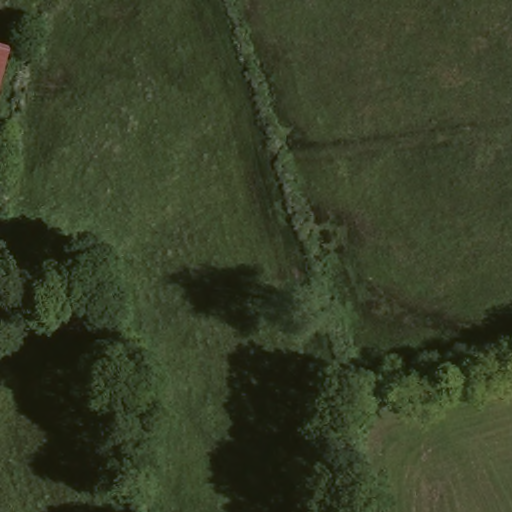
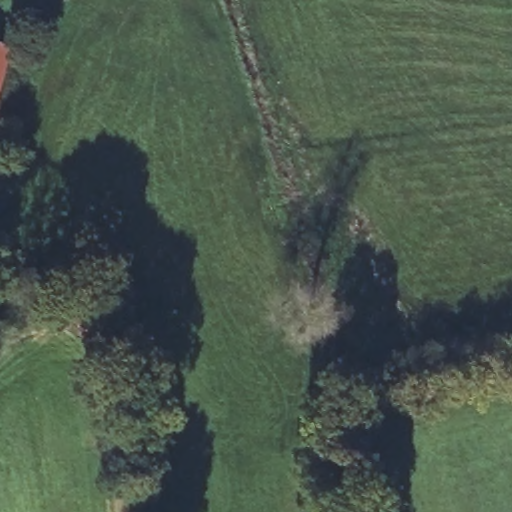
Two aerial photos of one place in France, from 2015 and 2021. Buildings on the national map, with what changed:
unchanged [(0,71),(0,43),(7,45),(0,71)]

